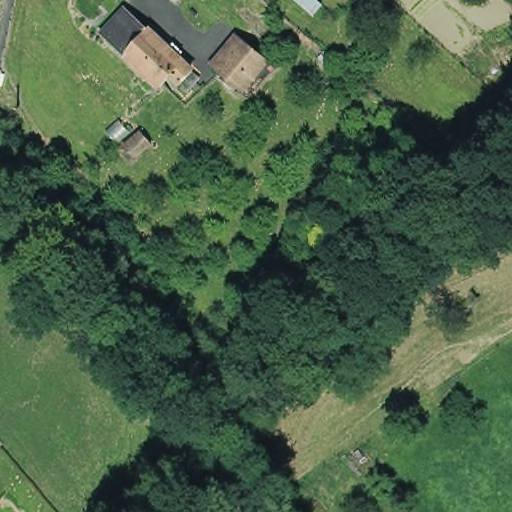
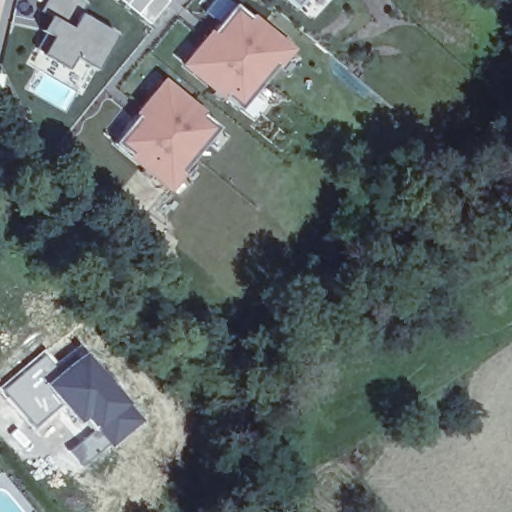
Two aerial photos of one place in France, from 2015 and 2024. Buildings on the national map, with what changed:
new [(86,3),(83,12),(118,34),(96,66),(76,52),(70,63),(47,51),(55,32),(43,26),(52,13),(43,7),(48,0),(81,0),(86,3)]
new [(170,1),(151,24),(123,0),(168,0),(170,1)]
new [(298,3),(294,0),(302,0),(298,3)]
new [(214,26),(218,29),(238,6),(252,19),(255,14),(297,49),(282,64),(277,61),(243,102),(227,91),(222,97),(183,64),(214,26)]
demolished [(180,89),(175,84),(165,76),(155,87),(121,55),(98,34),(122,9),(145,30),(179,61),(187,70),(193,76),(180,89)]
demolished [(213,71),(238,40),(262,59),(236,90),(213,71)]
new [(206,108),(203,111),(216,124),(182,167),(188,170),(172,191),(126,156),(132,151),(120,138),(142,114),(139,111),(165,76),(206,108)]
unchanged [(2,95),(7,92),(12,101),(7,104),(2,95)]
demolished [(126,146),(142,132),(153,143),(135,158),(126,146)]
new [(54,360),(78,341),(81,345),(42,380),(61,407),(35,430),(0,390),(0,383),(41,347),(54,360)]
new [(82,420),(76,425),(61,407),(42,380),(81,345),(141,418),(106,446),(81,464),(66,449),(90,428),(82,420)]

